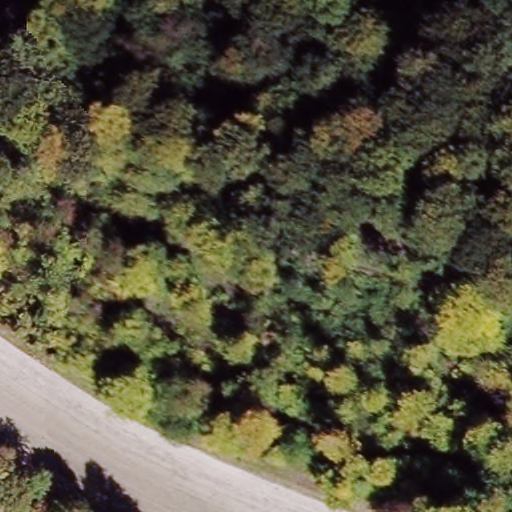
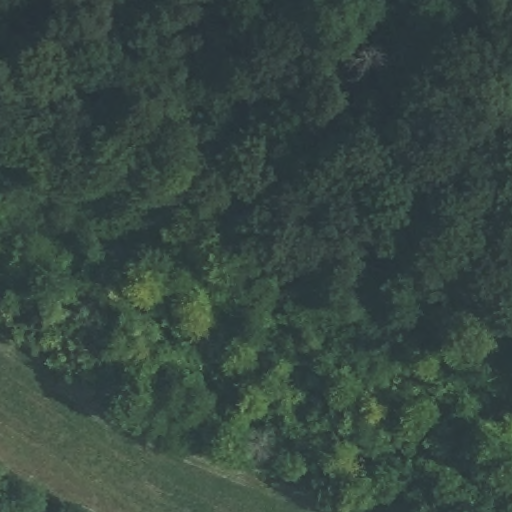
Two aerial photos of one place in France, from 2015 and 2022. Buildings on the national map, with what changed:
[]

